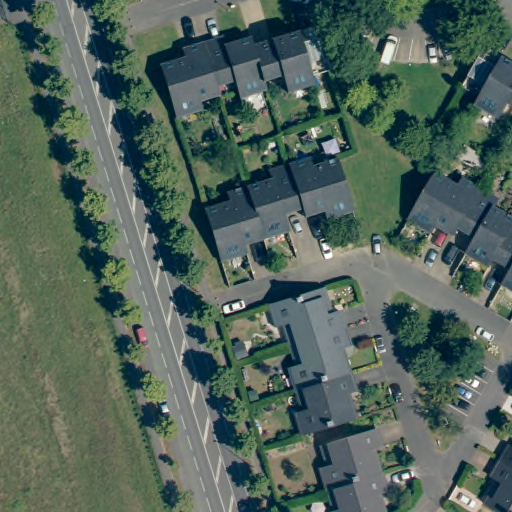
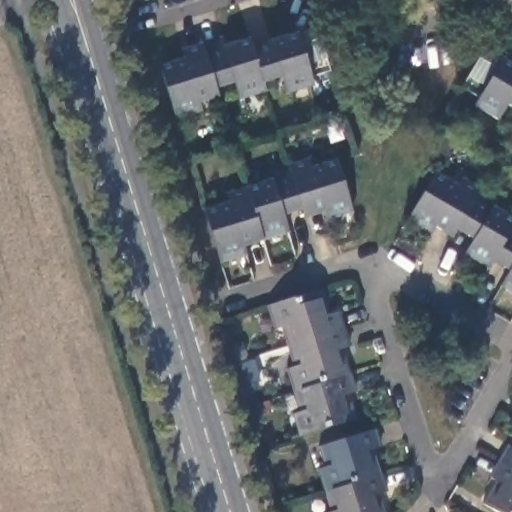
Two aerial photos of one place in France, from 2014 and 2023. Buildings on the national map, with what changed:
unchanged [(309,77),(312,84),(285,92),(280,76),(261,82),(263,92),(239,100),(232,82),(212,89),(214,96),(195,102),(199,111),(173,119),(165,91),(157,66),(182,59),(179,50),(183,49),(218,37),(221,46),(239,40),(246,38),(250,47),(295,32),(313,27),(327,72),(309,77)]
unchanged [(499,119),(477,105),(482,97),(465,87),(487,49),(512,63),(512,105),(508,102),(499,119)]
unchanged [(201,209),(227,201),(224,192),(268,179),(266,170),(303,157),(306,167),(333,159),(349,212),(323,220),(321,212),(301,217),(299,209),(280,215),(285,232),(259,240),(240,246),(243,254),(217,261),(201,209)]
unchanged [(489,263),(467,250),(477,234),(459,224),(454,231),(438,221),(433,230),(409,215),(438,167),(462,180),(466,174),(501,194),(496,201),(512,211),(512,264),(495,255),(489,263)]
unchanged [(512,287),(503,281),(512,265),(512,287)]
unchanged [(281,326),(274,327),(266,305),(316,290),(324,315),(335,312),(340,329),(287,345),(281,326)]
unchanged [(340,329),(345,347),(334,350),(343,375),(293,390),(286,368),(294,366),(287,345),(340,329)]
unchanged [(343,375),(346,374),(351,392),(341,396),(349,420),(299,435),(292,413),(299,412),(293,390),(343,375)]
unchanged [(321,468),(330,466),(323,445),(375,428),(381,447),(370,450),(379,475),(329,490),(321,468)]
unchanged [(505,446),(512,449),(512,470),(496,461),(505,446)]
unchanged [(512,512),(494,512),(483,506),(497,482),(487,477),(496,461),(512,470),(512,512)]
unchanged [(382,474),(388,492),(377,495),(383,512),(332,512),(336,511),(329,490),(379,475),(382,474)]

